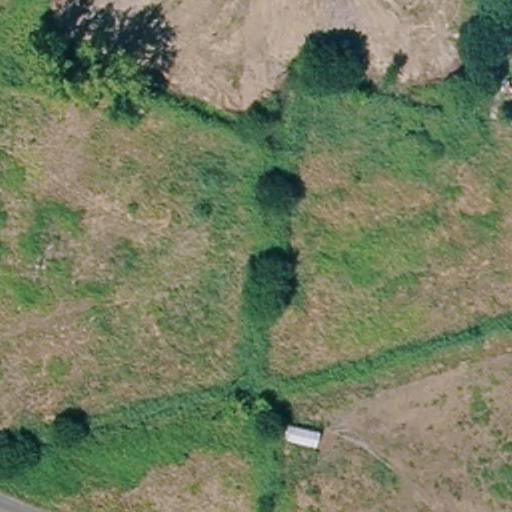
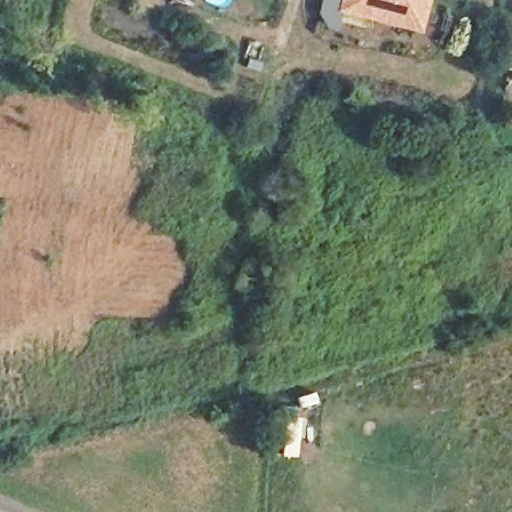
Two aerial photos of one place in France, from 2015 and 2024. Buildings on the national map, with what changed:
new [(380,22),(342,12),(346,0),(429,0),(425,16),(420,32),(380,22)]

